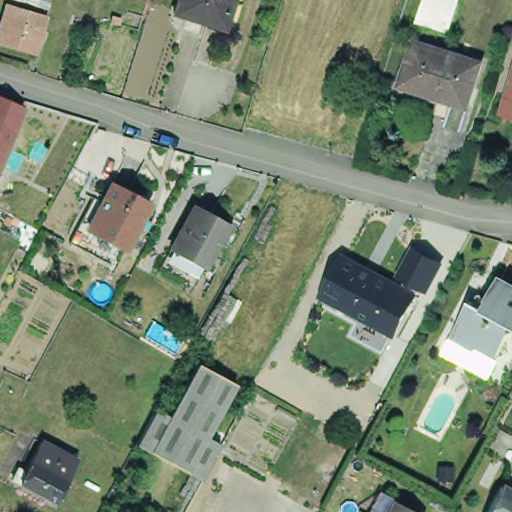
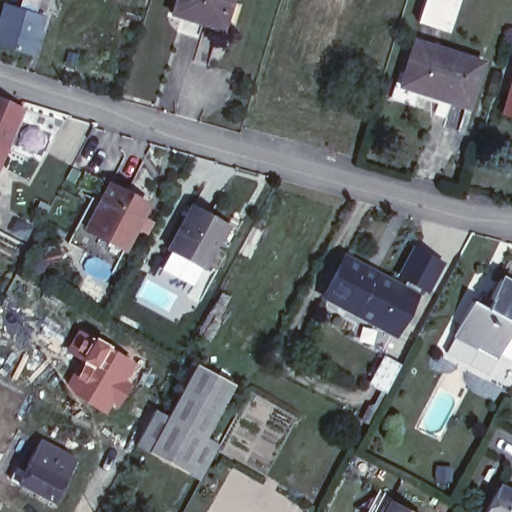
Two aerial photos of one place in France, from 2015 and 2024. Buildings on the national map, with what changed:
unchanged [(226,33),(216,30),(166,15),(171,0),(225,0),(224,2),(235,5),(226,33)]
unchanged [(452,30),(424,21),(431,0),(462,0),(452,30)]
unchanged [(43,16),(31,55),(0,45),(0,16),(3,4),(43,16)]
unchanged [(394,86),(399,68),(406,70),(414,37),(482,59),(469,104),(454,99),(453,105),(394,86)]
unchanged [(508,108),(512,94),(512,109),(508,108)]
unchanged [(0,159),(0,100),(20,109),(0,159)]
unchanged [(0,174),(0,169),(1,170),(0,174)]
unchanged [(108,184),(146,204),(123,249),(85,229),(108,184)]
unchanged [(178,234),(191,211),(223,230),(206,261),(201,273),(167,255),(178,234)]
unchanged [(347,256),(405,287),(410,278),(404,274),(416,250),(444,263),(430,290),(423,286),(399,334),(328,295),(347,256)]
unchanged [(509,326),(506,335),(511,336),(499,358),(479,348),(476,353),(453,340),(472,305),(476,306),(481,296),(489,300),(499,280),(512,288),(512,328),(509,326)]
new [(80,360),(65,348),(78,328),(138,364),(123,396),(109,416),(76,396),(64,385),(80,360)]
unchanged [(151,458),(138,450),(156,415),(171,422),(199,370),(237,390),(209,443),(222,450),(203,485),(189,478),(151,458)]
unchanged [(21,468),(26,471),(44,437),(78,456),(57,497),(23,479),(17,476),(21,468)]
unchanged [(484,512),(499,483),(512,490),(512,512),(484,512)]
unchanged [(409,512),(388,512),(393,503),(409,512)]

